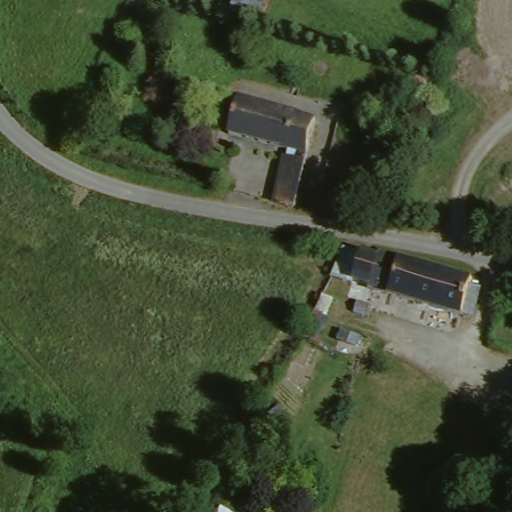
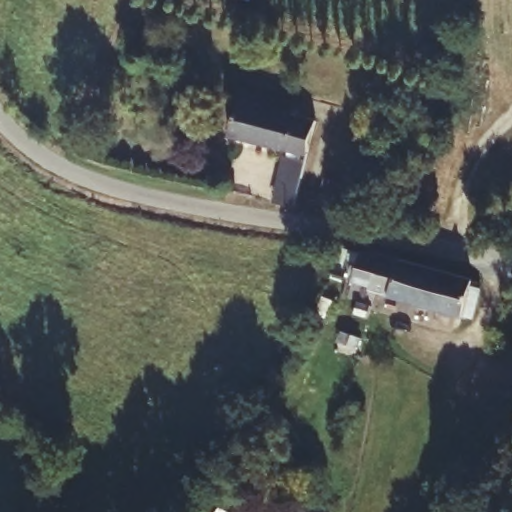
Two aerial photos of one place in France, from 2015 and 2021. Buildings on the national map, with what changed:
unchanged [(414,81),(428,88),(421,102),(407,95),(414,81)]
unchanged [(315,115),(307,151),(228,131),(238,96),(315,115)]
unchanged [(291,154),(310,159),(297,204),(274,200),(291,154)]
unchanged [(345,174),(340,200),(321,197),(326,171),(345,174)]
unchanged [(458,273),(471,276),(461,312),(409,295),(351,275),(349,280),(330,274),(345,246),(363,249),(393,255),(458,273)]
unchanged [(352,313),(356,304),(369,308),(365,318),(352,313)]
unchanged [(216,507),(224,512),(213,512),(216,507)]

